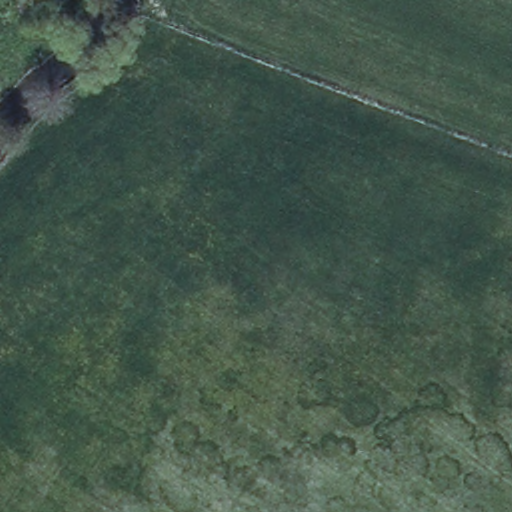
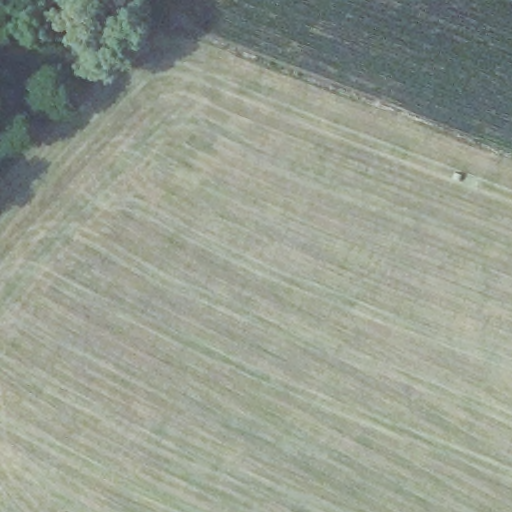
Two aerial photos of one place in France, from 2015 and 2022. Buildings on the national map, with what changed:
[]

